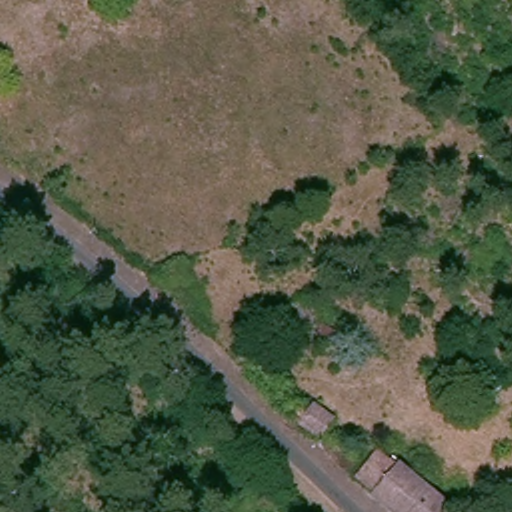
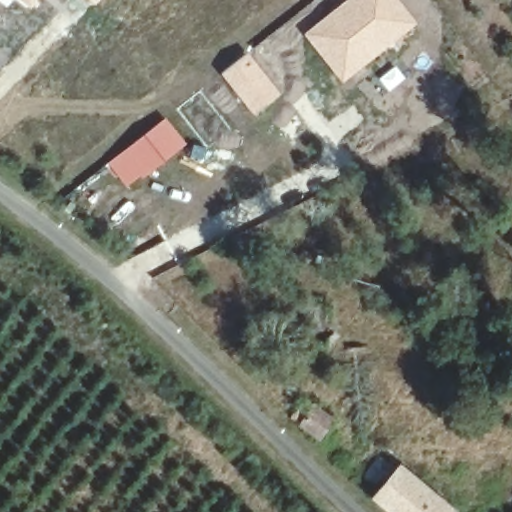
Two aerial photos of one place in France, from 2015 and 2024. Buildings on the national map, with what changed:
new [(0,1),(0,0),(5,0),(3,3),(0,1)]
new [(18,0),(37,0),(31,9),(18,0)]
new [(87,0),(100,0),(94,6),(87,0)]
new [(399,0),(417,23),(342,83),(302,33),(344,0),(399,0)]
new [(248,50),(281,94),(254,115),(220,73),(248,50)]
unchanged [(342,345),(316,311),(327,303),(353,336),(342,345)]
unchanged [(310,394),(336,415),(323,429),(296,407),(310,394)]
unchanged [(383,490),(366,476),(384,456),(401,471),(450,512),(408,512),(383,490)]

